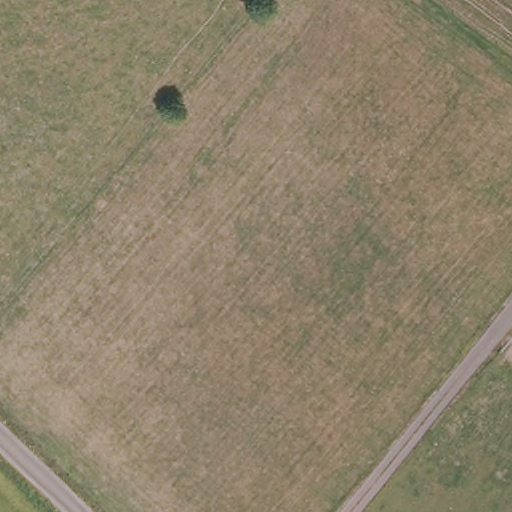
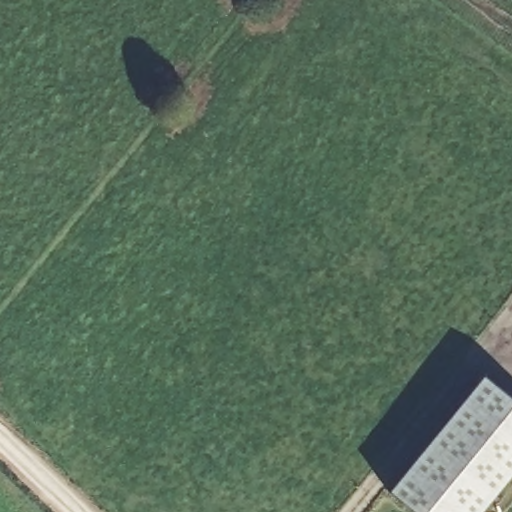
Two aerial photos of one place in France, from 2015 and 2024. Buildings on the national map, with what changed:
new [(482,377),(512,401),(512,481),(488,512),(407,512),(388,497),(482,377)]

